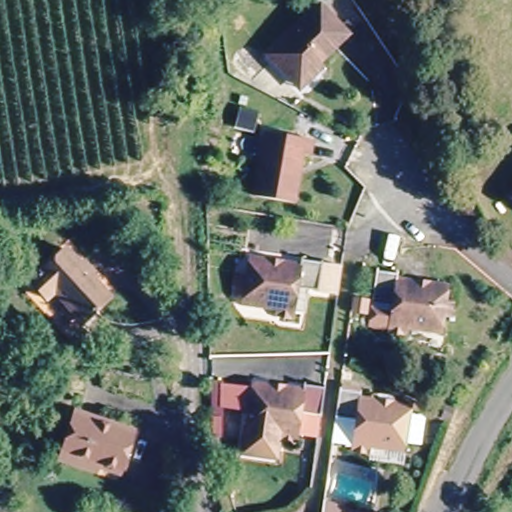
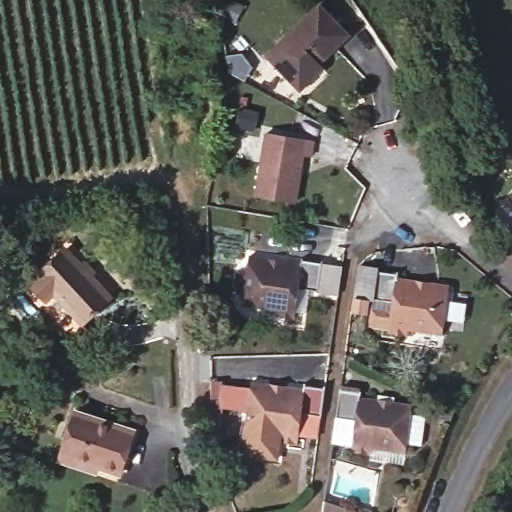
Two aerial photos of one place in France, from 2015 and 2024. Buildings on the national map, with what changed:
unchanged [(301,85),(297,81),(270,52),(320,5),(346,33),(320,59),(324,63),(301,85)]
unchanged [(269,129),(314,138),(311,152),(304,151),(295,197),(256,189),(269,129)]
unchanged [(64,249),(112,294),(83,321),(53,293),(45,299),(28,283),(64,249)]
unchanged [(301,306),(300,314),(277,311),(278,307),(247,301),(247,297),(236,280),(238,266),(250,268),(252,251),(307,258),(307,254),(347,260),(343,290),(323,287),(323,286),(315,285),(312,307),(301,306)]
unchanged [(400,267),(399,271),(450,280),(443,331),(410,326),(409,332),(389,329),(390,323),(369,320),(371,306),(393,309),(394,298),(373,294),(378,264),(400,267)]
unchanged [(307,385),(308,378),(329,382),(321,429),(302,426),(299,441),(280,438),(277,455),(243,449),(247,422),(237,403),(239,390),(252,392),(254,376),(307,385)]
unchanged [(229,381),(231,434),(222,434),(220,381),(229,381)]
unchanged [(420,443),(406,440),(404,449),(370,443),(369,451),(351,448),(352,436),(333,433),(340,383),(359,385),(358,392),(412,401),(411,410),(425,413),(420,443)]
unchanged [(74,412),(134,430),(122,471),(119,480),(58,461),(61,451),(74,412)]
unchanged [(360,512),(326,512),(328,496),(360,512)]

